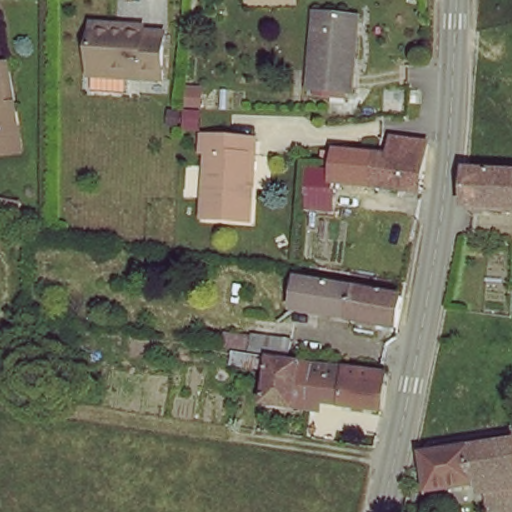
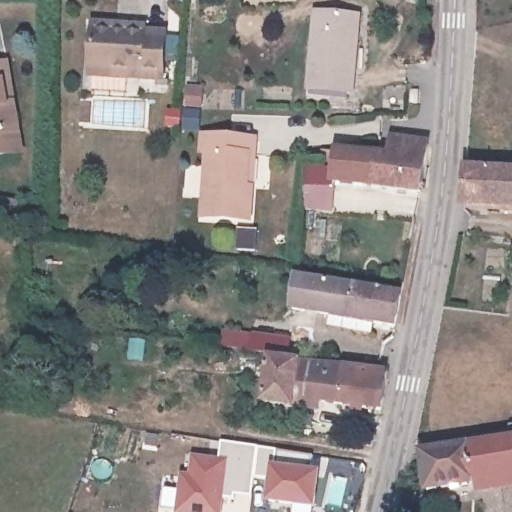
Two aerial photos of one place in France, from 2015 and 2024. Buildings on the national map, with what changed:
unchanged [(315,94),(320,18),(363,22),(357,97),(315,94)]
unchanged [(90,84),(94,34),(118,35),(118,40),(166,42),(164,89),(140,87),(115,85),(90,84)]
unchanged [(13,103),(21,151),(0,155),(0,64),(7,63),(13,103)]
unchanged [(430,104),(412,103),(413,91),(431,92),(430,104)]
unchanged [(260,143),(260,160),(253,161),(251,192),(256,193),(255,225),(208,223),(212,159),(207,157),(208,139),(260,143)]
unchanged [(305,207),(306,190),(308,173),(334,175),(336,155),(390,160),(393,143),(427,148),(420,197),(333,184),(331,191),(330,208),(305,207)]
unchanged [(470,204),(471,182),(472,169),(512,171),(512,206),(470,204)]
unchanged [(0,200),(20,203),(18,223),(0,220),(0,200)]
unchanged [(379,322),(376,334),(359,331),(360,319),(329,313),(315,311),(320,281),(334,284),(406,296),(401,326),(379,322)]
unchanged [(261,355),(265,330),(285,333),(283,342),(299,345),(296,360),(261,355)]
unchanged [(318,404),(311,403),(310,411),(274,406),(280,362),(308,364),(308,367),(323,369),(318,404)]
unchanged [(318,404),(323,369),(375,375),(374,386),(394,389),(393,413),(318,404)]
new [(221,441),(290,453),(289,458),(280,457),(279,465),(272,465),(270,480),(255,479),(251,499),(236,497),(235,501),(225,499),(227,459),(218,457),(221,441)]
unchanged [(512,445),(512,482),(492,485),(432,495),(426,459),(512,445)]
new [(187,470),(191,454),(218,457),(227,459),(225,499),(222,512),(175,512),(184,469),(187,470)]
new [(270,480),(272,465),(279,465),(321,470),(316,510),(268,505),(270,480)]
unchanged [(512,482),(512,512),(495,512),(492,485),(512,482)]

